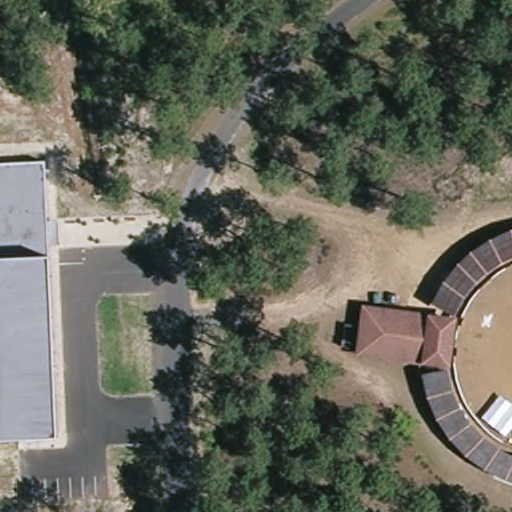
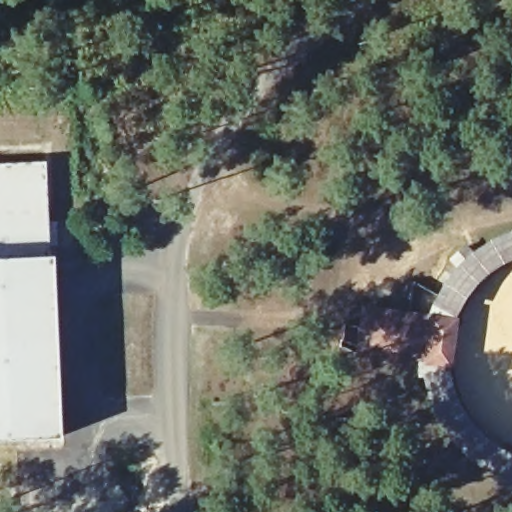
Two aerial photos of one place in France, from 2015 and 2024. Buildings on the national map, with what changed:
unchanged [(43,161),(47,255),(55,436),(0,438),(0,162),(43,161)]
unchanged [(450,315),(431,303),(435,293),(446,275),(459,259),(479,242),(500,231),(512,228),(512,262),(510,263),(494,274),(478,290),(467,309),(462,326),(459,339),(457,355),(456,370),(456,385),(460,393),(463,407),(468,418),(477,431),(489,442),(503,451),(512,454),(512,485),(507,484),(487,471),(468,456),(451,441),(437,420),(430,401),(426,385),(422,372),(442,366),(425,362),(357,352),(361,304),(426,314),(450,315)]

